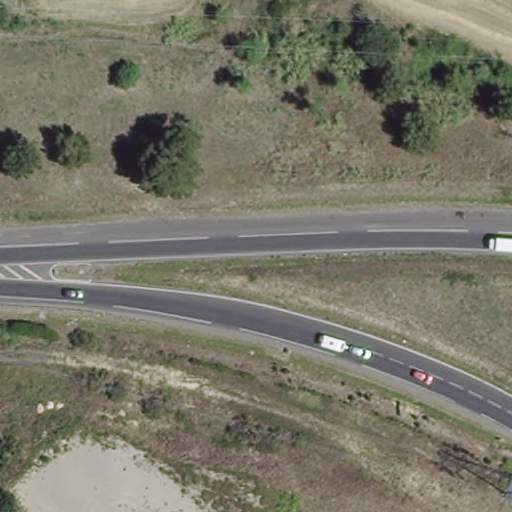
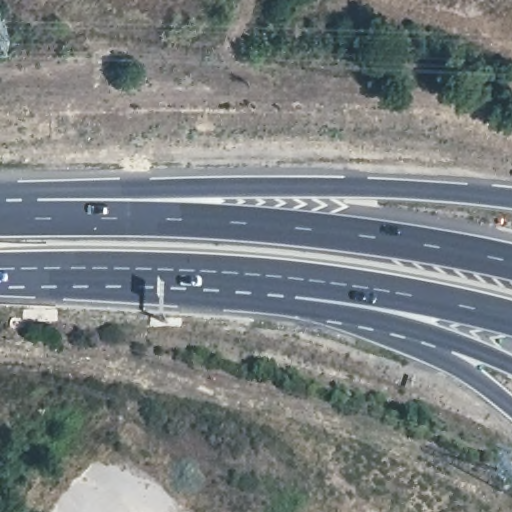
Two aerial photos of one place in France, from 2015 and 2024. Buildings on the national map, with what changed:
[]

